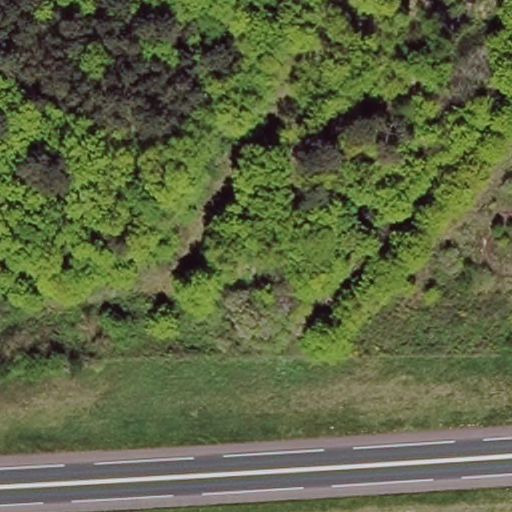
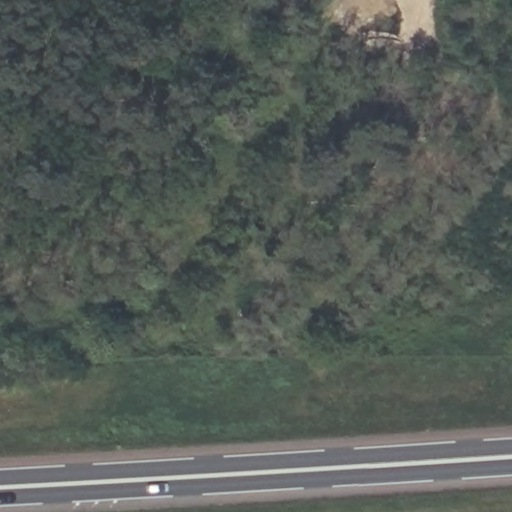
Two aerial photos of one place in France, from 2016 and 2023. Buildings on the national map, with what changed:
[]

